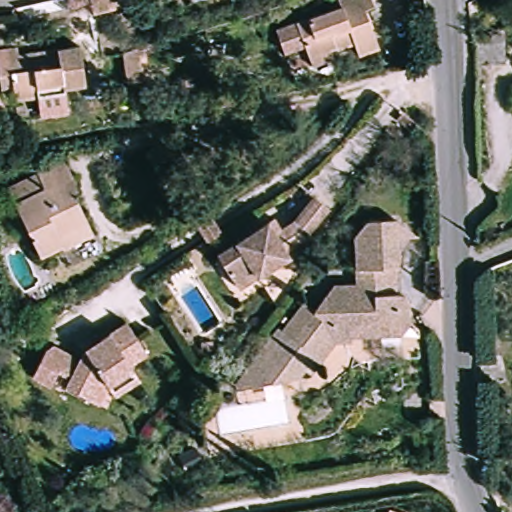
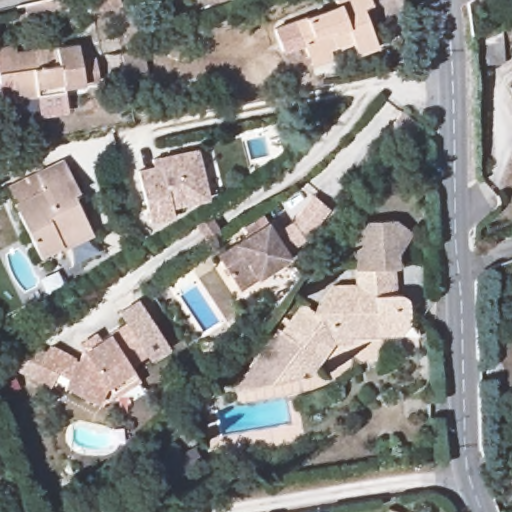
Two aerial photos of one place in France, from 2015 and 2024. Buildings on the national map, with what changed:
unchanged [(91,13),(88,0),(120,0),(121,5),(91,13)]
unchanged [(339,0),(372,0),(373,1),(364,4),(377,41),(356,49),(352,37),(338,42),(329,55),(311,62),(303,40),(281,47),(274,25),(340,2),(339,0)]
unchanged [(78,40),(84,78),(68,81),(63,82),(68,107),(39,111),(36,92),(14,95),(11,83),(0,85),(0,52),(60,42),(78,40)]
unchanged [(141,46),(146,76),(125,79),(121,51),(141,46)]
new [(208,199),(170,208),(173,217),(150,223),(137,170),(151,166),(151,159),(196,150),(208,199)]
unchanged [(78,190),(73,193),(92,234),(61,248),(60,245),(38,256),(14,204),(6,187),(36,174),(64,161),(78,190)]
unchanged [(318,195),(334,208),(310,237),(289,251),(292,256),(242,288),(221,255),(271,223),(278,219),(285,229),(296,223),(318,195)]
unchanged [(394,262),(395,289),(397,289),(399,289),(403,290),(404,292),(407,294),(408,296),(410,315),(399,330),(351,332),(351,337),(334,338),(309,370),(303,366),(297,374),(271,380),(271,378),(235,387),(234,381),(278,324),(281,327),(303,299),(313,306),(332,282),(356,281),(354,264),(356,264),(354,233),(367,216),(396,214),(404,221),(412,227),(397,248),(397,262),(394,262)]
unchanged [(206,242),(194,225),(206,218),(210,215),(221,232),(206,242)]
unchanged [(118,400),(111,391),(102,410),(70,393),(74,384),(63,377),(54,392),(36,383),(50,356),(56,352),(83,366),(89,356),(85,350),(100,340),(104,346),(131,329),(151,358),(134,369),(137,374),(143,384),(118,400)]
unchanged [(211,350),(201,350),(201,341),(211,341),(211,350)]
unchanged [(19,387),(5,394),(0,385),(0,381),(13,374),(19,387)]
unchanged [(194,446),(202,461),(184,470),(176,456),(194,446)]

